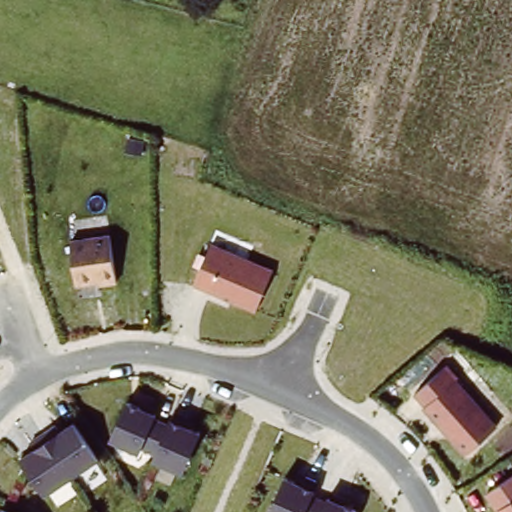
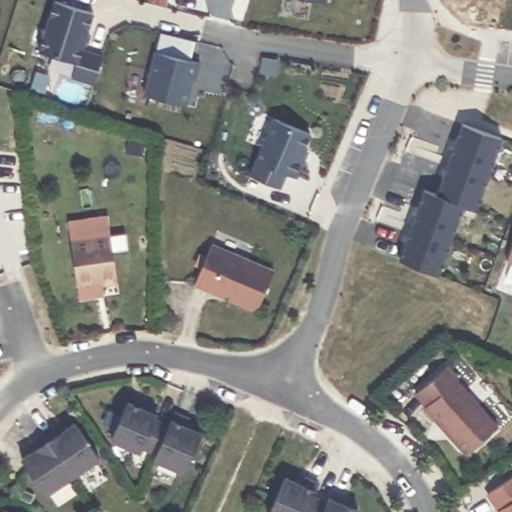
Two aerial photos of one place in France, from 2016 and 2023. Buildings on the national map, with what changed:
new [(316,0),(328,0),(328,1),(316,0)]
new [(73,78),(76,63),(38,51),(52,1),(94,11),(83,49),(103,55),(96,84),(73,78)]
new [(193,77),(187,106),(143,96),(154,51),(158,51),(161,31),(196,40),(193,61),(202,63),(199,78),(193,77)]
new [(306,149),(309,151),(297,179),(288,175),(283,189),(249,174),(274,118),(312,135),(306,149)]
new [(460,123),(500,137),(487,173),(447,158),(460,123)]
new [(447,158),(487,173),(474,208),(462,203),(434,193),(447,158)]
new [(422,188),(434,193),(462,203),(449,238),(409,223),(422,188)]
new [(68,220),(108,214),(111,234),(130,231),(132,249),(110,251),(108,235),(69,240),(68,220)]
new [(409,223),(449,238),(435,275),(396,259),(409,223)]
unchanged [(108,235),(115,282),(100,285),(99,280),(76,284),(69,240),(108,235)]
new [(512,266),(502,262),(512,237),(512,266)]
unchanged [(207,245),(271,269),(255,310),(191,286),(207,245)]
unchanged [(422,409),(414,397),(445,369),(461,389),(495,427),(466,455),(422,409)]
unchanged [(156,452),(142,446),(140,450),(110,437),(126,400),(156,413),(154,417),(168,423),(156,452)]
unchanged [(187,416),(184,423),(201,430),(183,470),(153,458),(156,452),(168,423),(173,410),(187,416)]
unchanged [(54,426),(58,432),(73,422),(98,459),(70,477),(42,434),(54,426)]
unchanged [(70,477),(43,495),(19,458),(33,449),(29,442),(42,434),(70,477)]
unchanged [(313,494),(305,512),(269,512),(285,475),(301,482),(304,475),(318,481),(313,494)]
unchanged [(313,494),(326,500),(328,495),(358,508),(356,512),(305,512),(313,494)]
unchanged [(512,512),(498,512),(512,502),(512,512)]
unchanged [(3,512),(0,512),(0,511),(3,512)]

